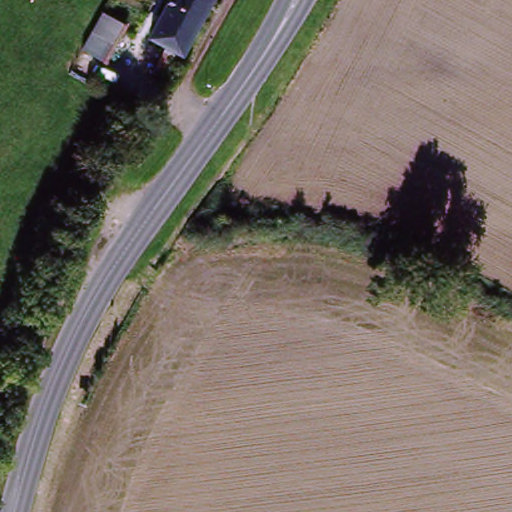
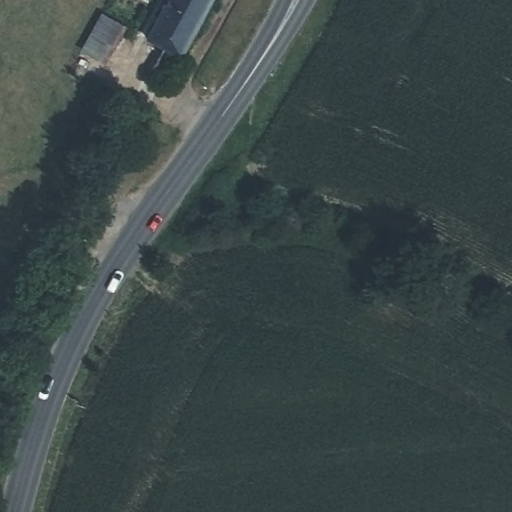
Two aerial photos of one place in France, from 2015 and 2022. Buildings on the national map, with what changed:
unchanged [(141,41),(164,0),(207,0),(174,59),(141,41)]

